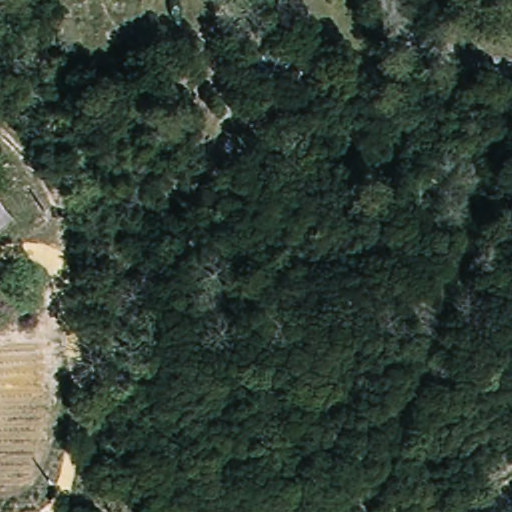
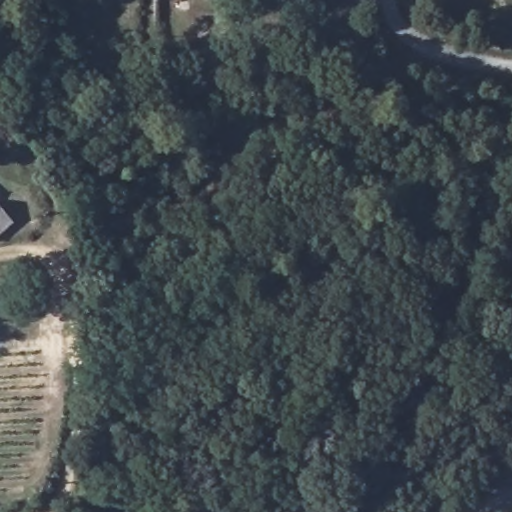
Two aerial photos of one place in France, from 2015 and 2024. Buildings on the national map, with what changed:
unchanged [(0,229),(0,203),(14,216),(0,229)]

